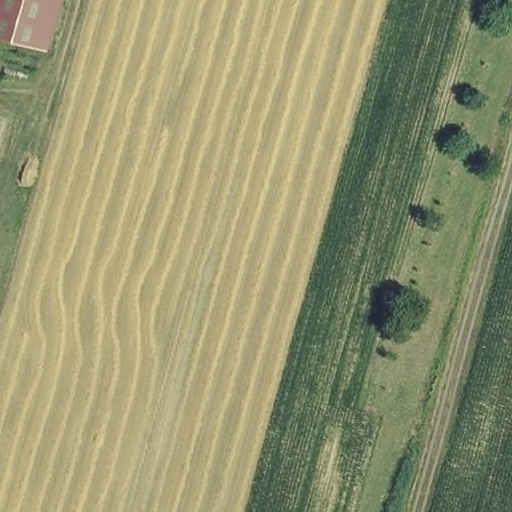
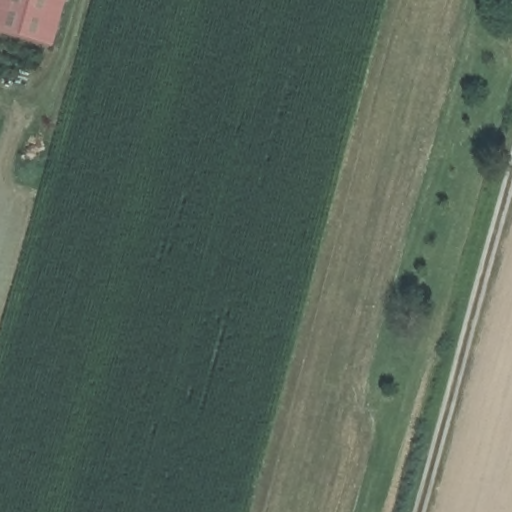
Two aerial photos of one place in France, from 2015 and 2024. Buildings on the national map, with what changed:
unchanged [(0,29),(0,0),(66,0),(54,43),(0,29)]

